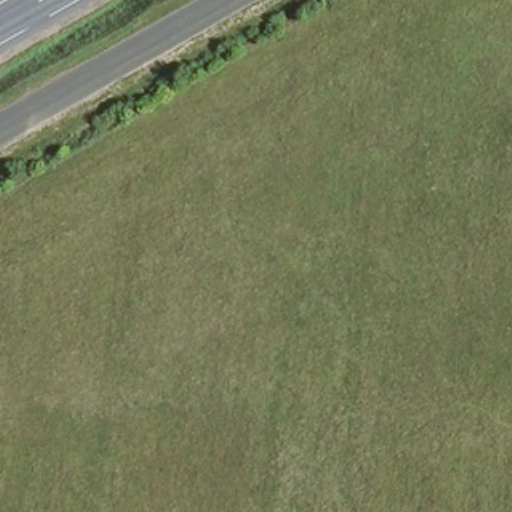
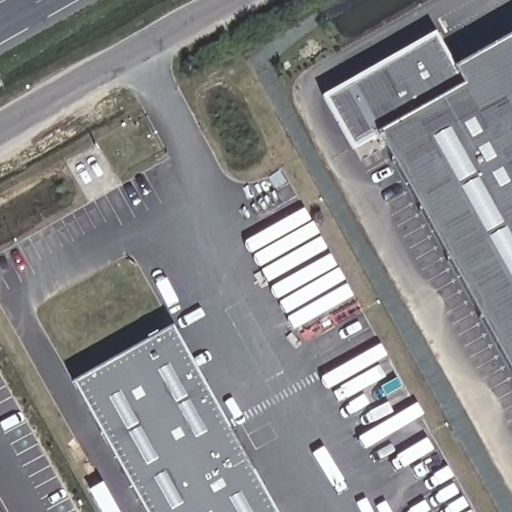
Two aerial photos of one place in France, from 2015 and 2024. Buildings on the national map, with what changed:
new [(458,69),(512,37),(512,368),(381,134),(355,148),(326,96),(435,34),(458,69)]
new [(173,328),(276,512),(147,512),(74,383),(173,328)]

